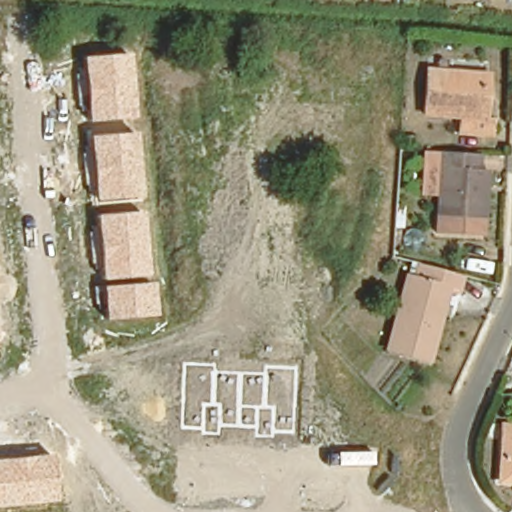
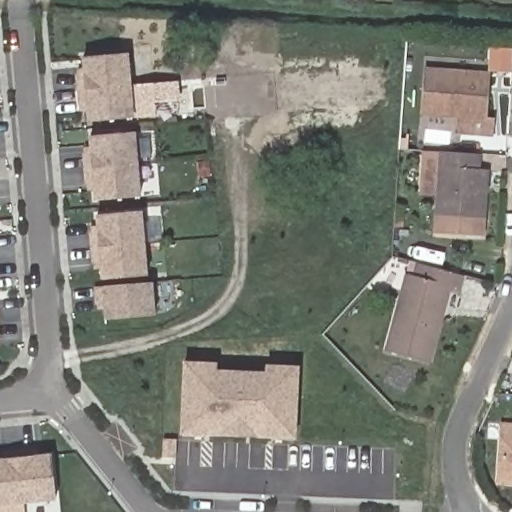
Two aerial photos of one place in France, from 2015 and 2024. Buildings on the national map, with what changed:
unchanged [(133,117),(87,121),(82,58),(126,54),(133,117)]
unchanged [(492,113),(491,134),(455,132),(455,113),(421,112),(423,65),(478,67),(486,67),(485,87),(484,113),(492,113)]
unchanged [(141,197),(94,201),(89,138),(135,133),(141,197)]
unchanged [(414,134),(413,145),(403,143),(404,133),(414,134)]
unchanged [(477,170),(487,169),(485,219),(485,239),(436,238),(438,196),(420,195),(421,151),(439,152),(477,155),(477,170)]
unchanged [(148,276),(101,280),(96,216),(142,211),(148,276)]
unchanged [(448,279),(429,352),(387,341),(407,268),(411,254),(420,257),(461,268),(458,283),(448,279)]
unchanged [(154,316),(105,319),(101,287),(151,281),(154,316)]
new [(178,434),(181,361),(216,362),(216,369),(264,371),(264,364),(300,366),(297,439),(178,434)]
unchanged [(500,480),(500,479),(503,424),(512,425),(512,485),(500,485),(500,480)]
unchanged [(0,459),(52,453),(56,500),(0,506),(0,459)]

